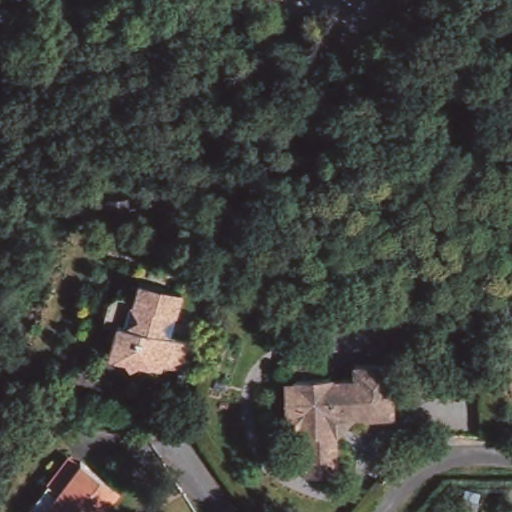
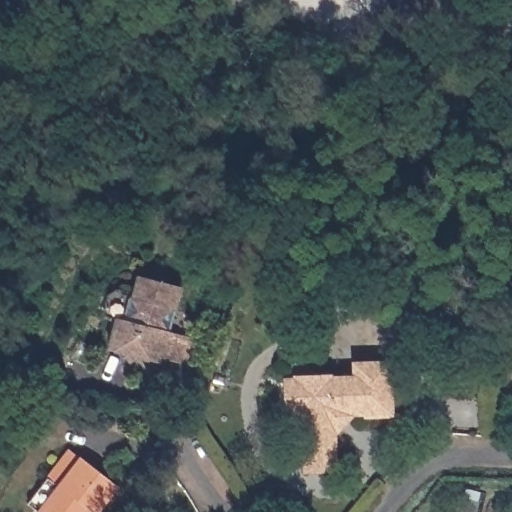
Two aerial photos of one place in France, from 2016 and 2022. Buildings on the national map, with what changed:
unchanged [(107,190),(129,189),(130,199),(139,199),(138,217),(109,218),(107,190)]
unchanged [(142,355),(127,363),(122,351),(110,349),(117,316),(125,318),(137,273),(184,285),(170,331),(194,338),(186,365),(142,355)]
unchanged [(298,453),(299,432),(282,412),(283,365),(305,366),(305,360),(337,361),(337,366),(366,366),(366,356),(389,357),(387,410),(373,409),(372,417),(358,416),(358,412),(342,412),(332,430),(331,472),(314,472),(298,471),(298,453)]
unchanged [(59,484),(81,456),(122,491),(106,512),(40,512),(29,503),(51,477),(59,484)]
unchanged [(512,481),(512,492),(498,493),(497,477),(512,475),(512,481)]

